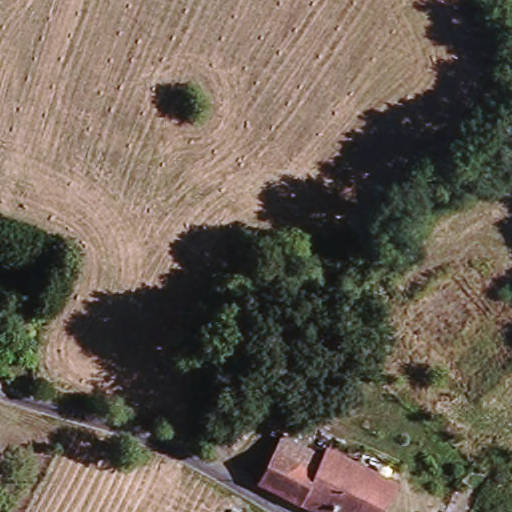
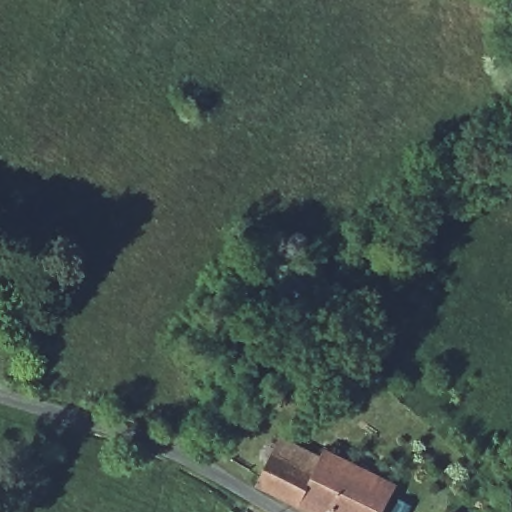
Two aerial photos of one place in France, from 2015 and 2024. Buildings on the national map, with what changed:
unchanged [(303,502),(260,480),(281,438),(323,457),(303,502)]
unchanged [(398,486),(386,512),(323,512),(303,502),(323,457),(326,451),(398,486)]

